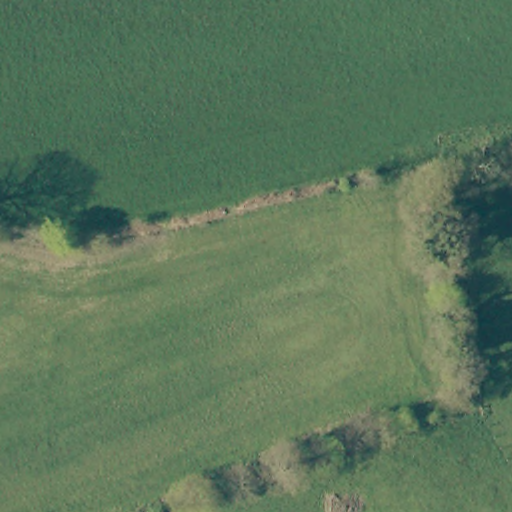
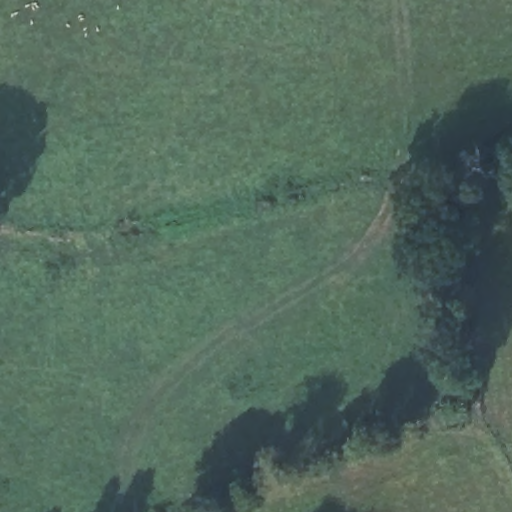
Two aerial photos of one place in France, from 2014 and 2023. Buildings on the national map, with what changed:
[]

